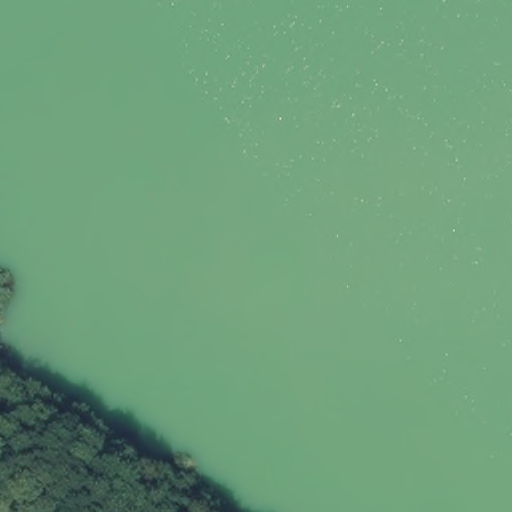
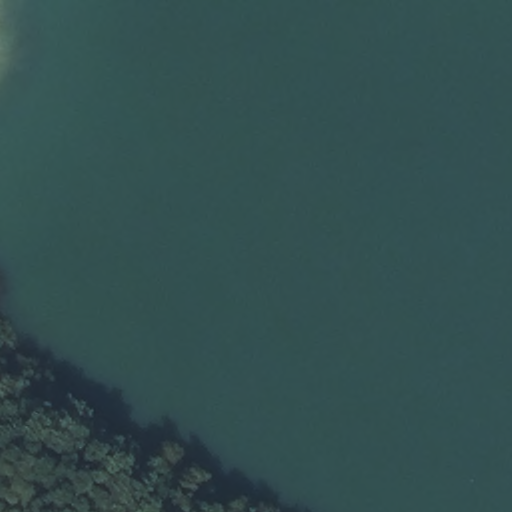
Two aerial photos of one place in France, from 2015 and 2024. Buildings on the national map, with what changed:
[]

